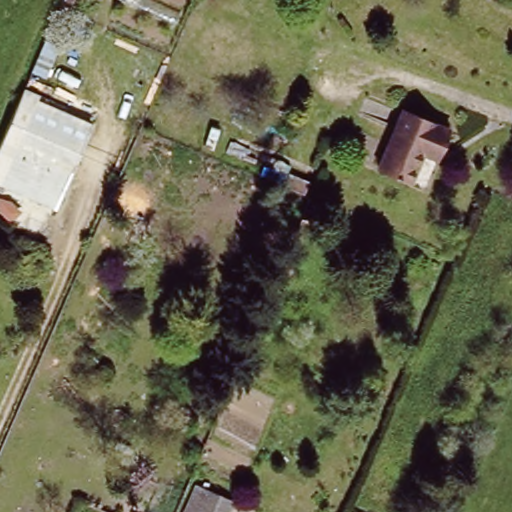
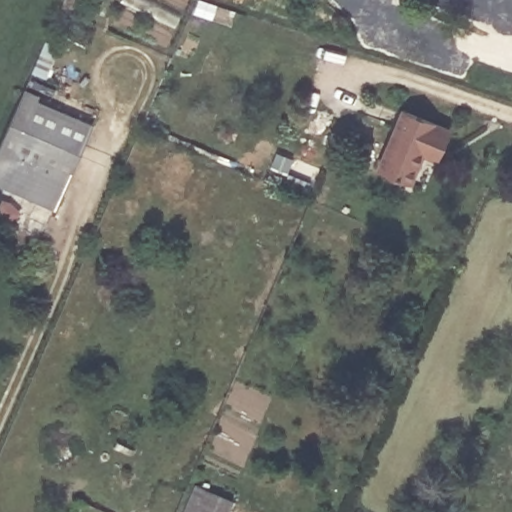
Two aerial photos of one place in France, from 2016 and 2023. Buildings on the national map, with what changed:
unchanged [(38,100),(89,122),(53,208),(0,187),(0,148),(8,131),(23,95),(28,86),(40,92),(38,100)]
unchanged [(418,153),(408,176),(374,162),(399,107),(447,126),(439,145),(432,158),(418,153)]
unchanged [(229,512),(199,512),(208,493),(233,504),(229,512)]

